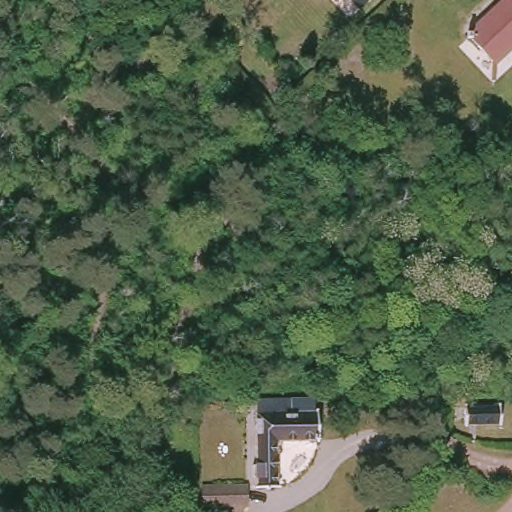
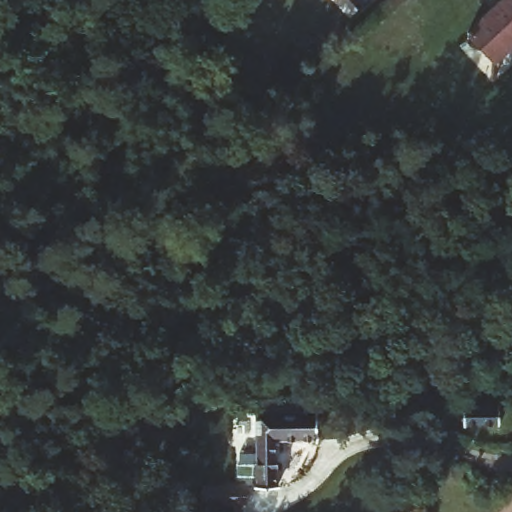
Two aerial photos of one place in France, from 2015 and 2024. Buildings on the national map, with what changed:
unchanged [(353,0),(366,0),(365,1),(359,6),(353,0)]
unchanged [(495,59),(494,79),(492,78),(493,58),(468,32),(464,33),(465,26),(470,26),(498,0),(512,0),(512,43),(495,59)]
unchanged [(504,413),(467,414),(467,397),(503,396),(504,413)]
unchanged [(261,481),(247,481),(246,446),(255,446),(261,446),(261,441),(261,409),(322,408),(322,435),(323,436),(279,437),(280,482),(261,483),(261,482),(261,481)]
unchanged [(245,501),(245,508),(237,509),(237,501),(207,501),(205,501),(204,483),(249,482),(249,500),(245,501)]

